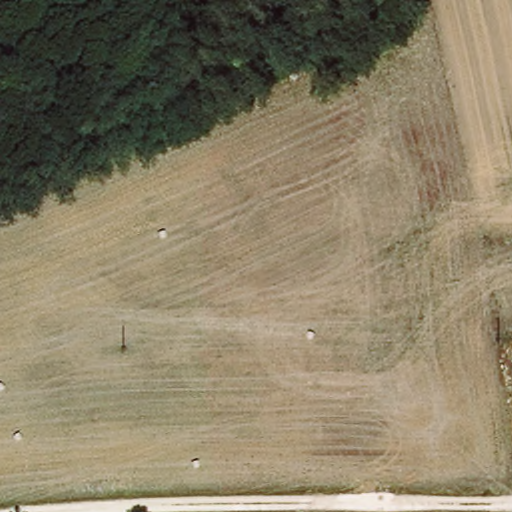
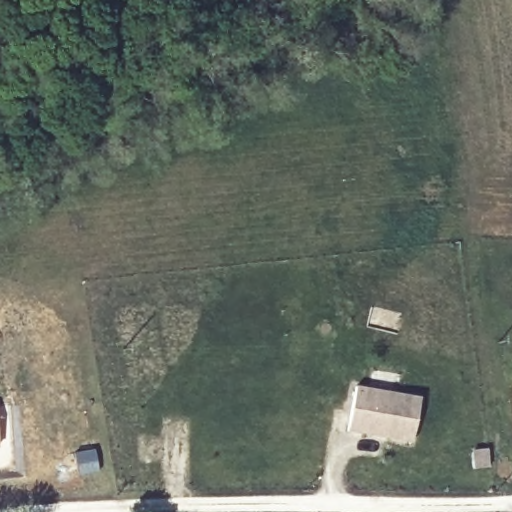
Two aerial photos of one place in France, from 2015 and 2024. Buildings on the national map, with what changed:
new [(345,432),(353,388),(417,400),(408,444),(381,439),(362,435),(345,432)]

